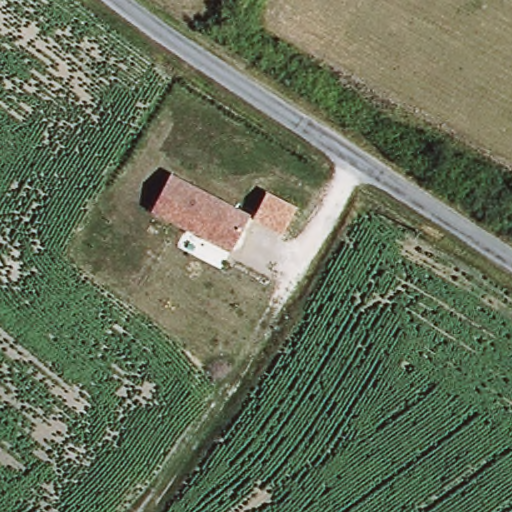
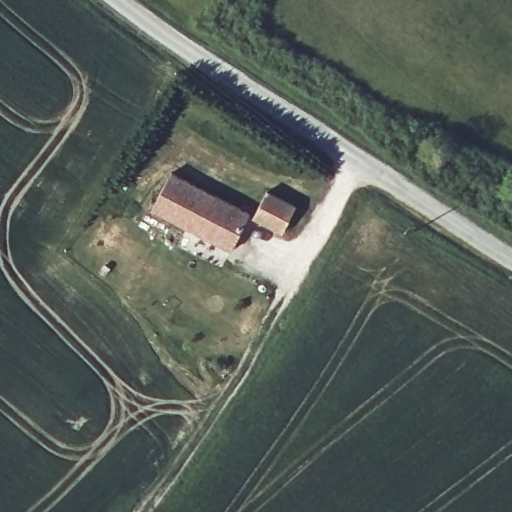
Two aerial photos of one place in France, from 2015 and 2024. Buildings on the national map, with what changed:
unchanged [(251,214),(232,253),(152,211),(172,173),(251,214)]
unchanged [(300,205),(284,237),(254,220),(270,190),(300,205)]

